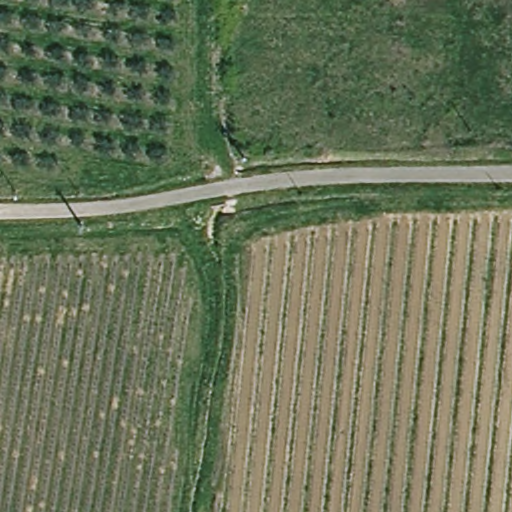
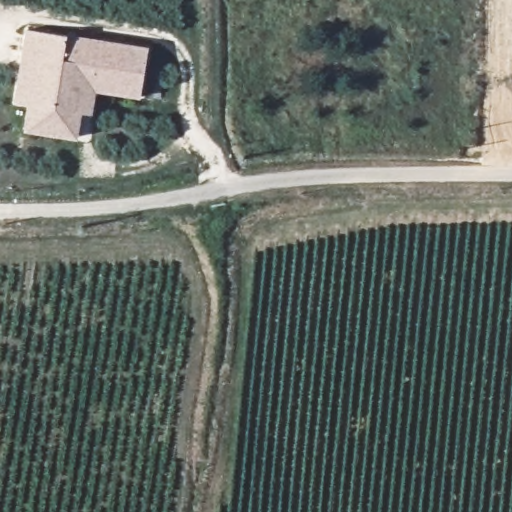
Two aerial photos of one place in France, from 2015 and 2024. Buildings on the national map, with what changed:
new [(54,131),(29,128),(33,104),(18,101),(21,76),(28,28),(67,34),(64,53),(88,57),(91,37),(148,44),(142,92),(96,87),(93,111),(83,110),(79,135),(54,131)]
demolished [(215,166),(198,170),(195,155),(214,152),(215,166)]

